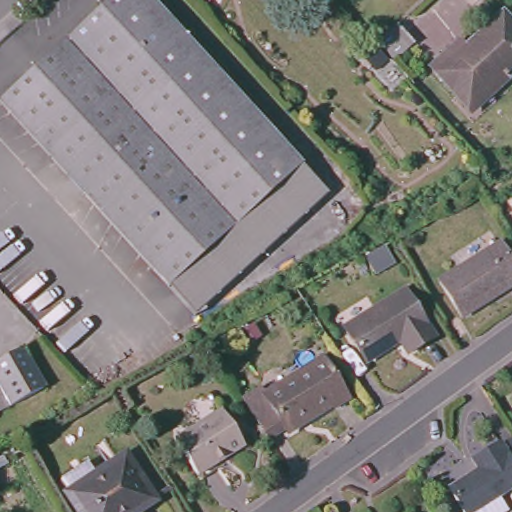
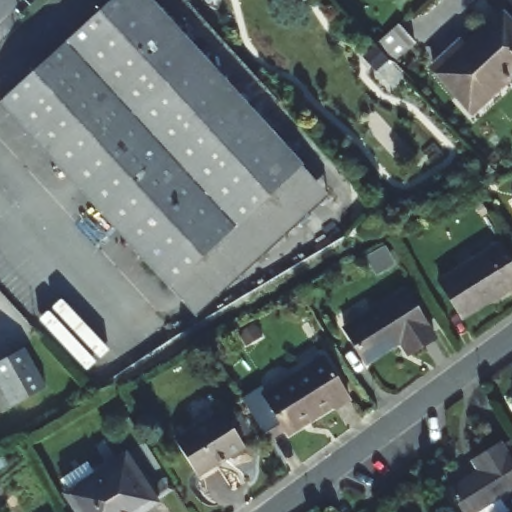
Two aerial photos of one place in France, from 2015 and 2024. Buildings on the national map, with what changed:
unchanged [(0,103),(0,100),(110,0),(150,0),(302,166),(169,288),(0,103)]
unchanged [(461,50),(497,17),(512,33),(512,63),(500,73),(503,76),(468,108),(429,67),(455,43),(461,50)]
unchanged [(415,43),(395,61),(377,42),(398,23),(415,43)]
unchanged [(375,45),(388,60),(377,70),(364,56),(375,45)]
unchanged [(302,166),(329,195),(195,318),(169,288),(302,166)]
unchanged [(512,202),(512,218),(505,207),(512,202)]
unchanged [(512,271),(512,284),(458,317),(436,282),(497,244),(512,271)]
unchanged [(354,263),(362,277),(349,285),(341,270),(354,263)]
unchanged [(400,290),(430,338),(404,355),(396,342),(361,363),(339,328),(400,290)]
unchanged [(40,393),(6,412),(5,410),(0,413),(0,362),(19,352),(40,393)]
unchanged [(257,393),(261,400),(317,363),(345,406),(331,415),(328,411),(283,439),(280,434),(263,445),(237,405),(257,393)]
unchanged [(193,477),(169,440),(216,411),(224,422),(233,416),(244,432),(235,439),(239,446),(193,477)]
unchanged [(498,512),(452,512),(439,489),(459,476),(469,471),(462,460),(490,443),(491,446),(504,438),(512,452),(512,484),(489,497),(498,512)]
unchanged [(66,496),(58,483),(82,468),(90,480),(120,461),(126,457),(156,503),(150,506),(142,512),(70,512),(62,499),(66,496)]

